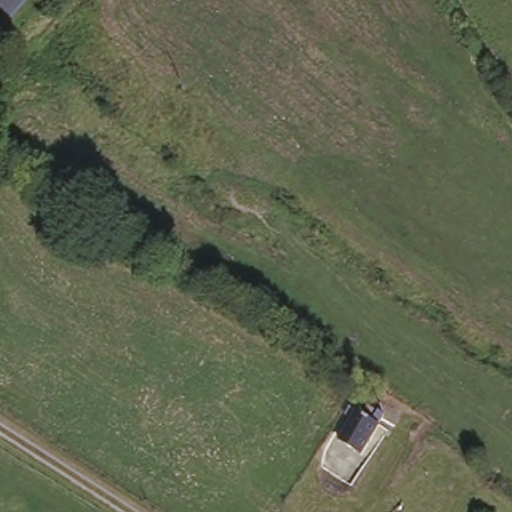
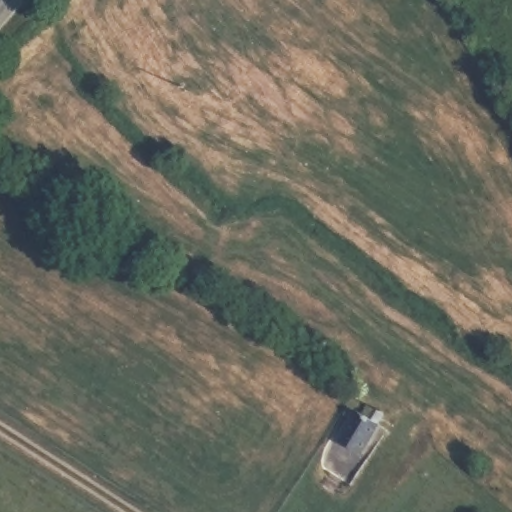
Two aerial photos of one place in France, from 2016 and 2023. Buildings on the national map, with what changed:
unchanged [(365,432),(372,421),(382,427),(375,438),(378,441),(361,463),(343,451),(358,427),(365,432)]

